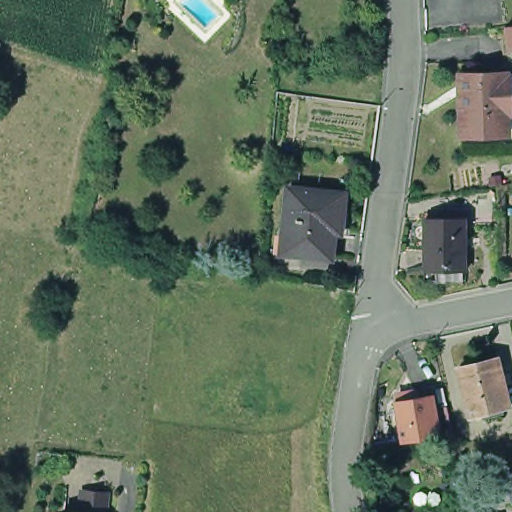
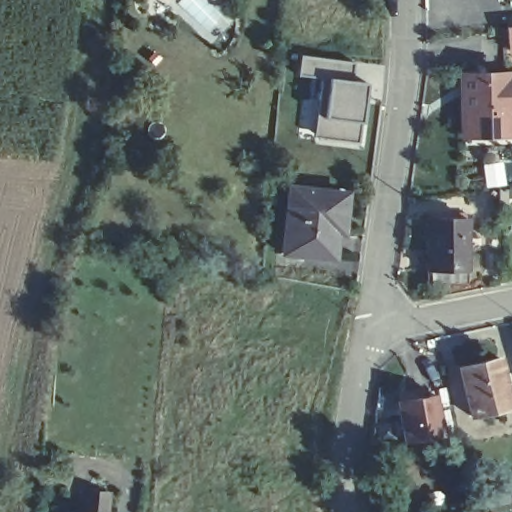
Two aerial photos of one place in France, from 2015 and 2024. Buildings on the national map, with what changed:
unchanged [(510,48),(507,26),(512,25),(512,48),(510,48)]
new [(352,82),(366,84),(361,124),(357,144),(313,138),(320,119),(325,80),(297,76),(299,56),(353,63),(352,82)]
unchanged [(493,128),(449,130),(449,75),(492,75),(492,79),(497,79),(497,96),(492,96),(493,128)]
unchanged [(493,128),(492,96),(497,96),(502,96),(502,143),(450,144),(449,130),(493,128)]
unchanged [(281,242),(287,193),(342,199),(341,223),(339,239),(332,238),(329,263),(287,259),(279,258),(281,242)]
unchanged [(422,271),(422,219),(461,220),(461,272),(422,271)]
unchanged [(473,417),(461,367),(500,357),(512,407),(473,417)]
unchanged [(408,421),(402,387),(424,383),(430,417),(408,421)]
unchanged [(105,496),(103,512),(77,512),(79,494),(105,496)]

